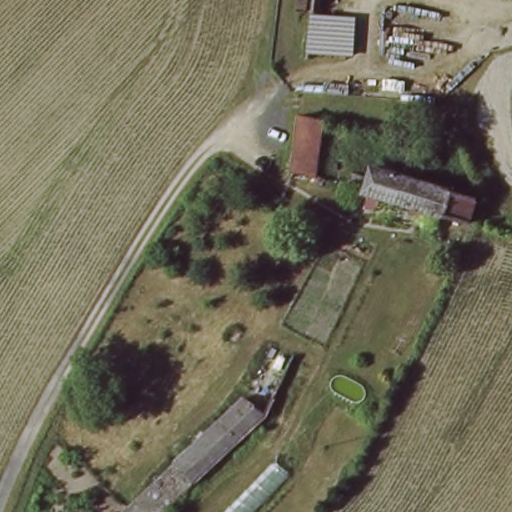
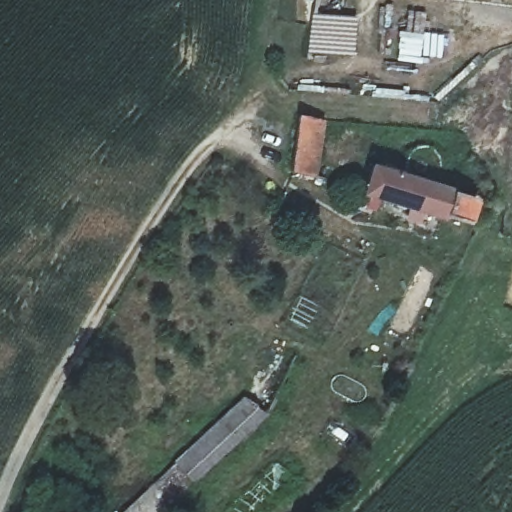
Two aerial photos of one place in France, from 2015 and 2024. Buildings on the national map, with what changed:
unchanged [(306,56),(307,12),(357,15),(355,59),(306,56)]
unchanged [(319,117),(316,181),(285,178),(291,114),(319,117)]
unchanged [(474,194),(466,225),(359,197),(368,166),(474,194)]
unchanged [(163,512),(113,512),(243,395),(265,415),(163,512)]

